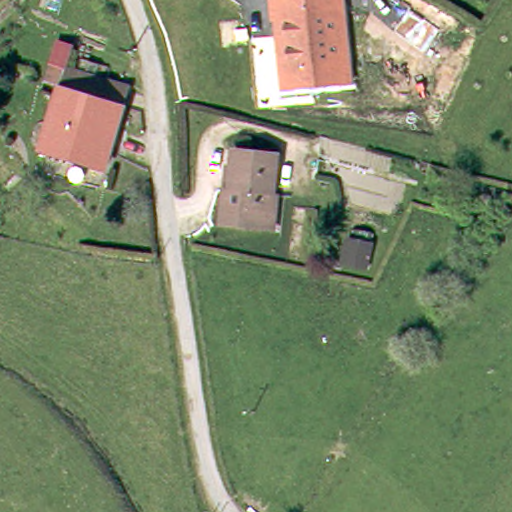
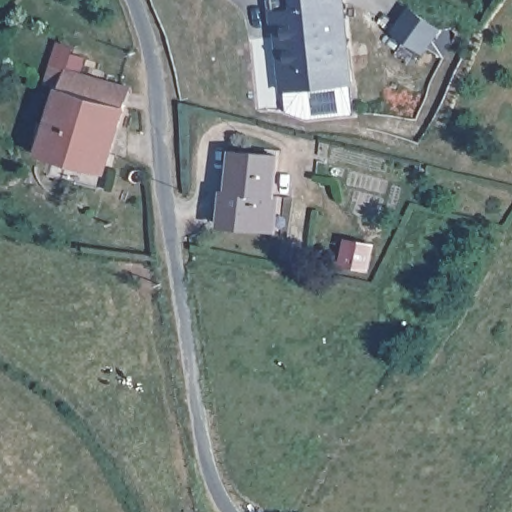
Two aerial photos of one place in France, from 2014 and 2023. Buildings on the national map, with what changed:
unchanged [(350,85),(286,91),(280,20),(278,20),(276,0),(344,0),(350,85)]
new [(409,8),(439,29),(422,53),(389,31),(409,8)]
unchanged [(40,150),(59,84),(44,78),(49,62),(64,66),(127,84),(103,169),(40,150)]
unchanged [(269,220),(260,220),(217,215),(221,180),(224,158),(229,158),(231,141),(273,147),(269,188),(272,188),(269,220)]
unchanged [(366,264),(346,261),(350,235),(370,239),(366,264)]

